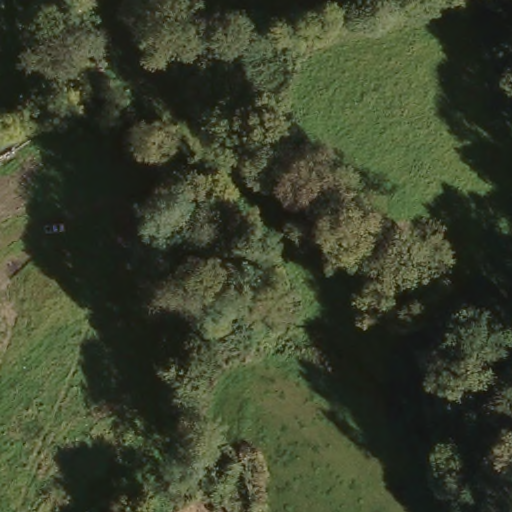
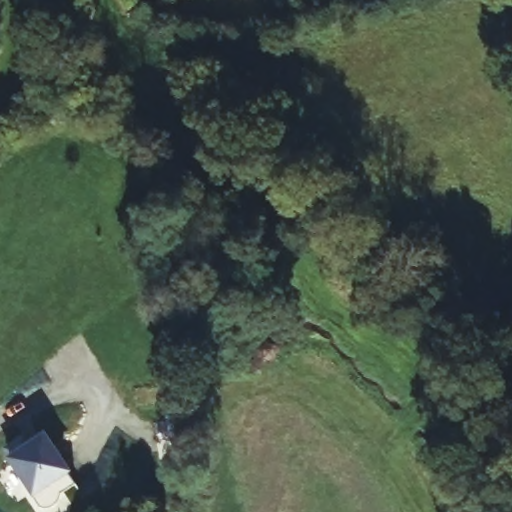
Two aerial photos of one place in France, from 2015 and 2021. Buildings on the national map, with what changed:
new [(23,433),(28,441),(44,431),(71,469),(65,473),(74,485),(60,494),(59,499),(55,504),(52,506),(48,508),(41,509),(32,497),(7,458),(2,449),(23,433)]

